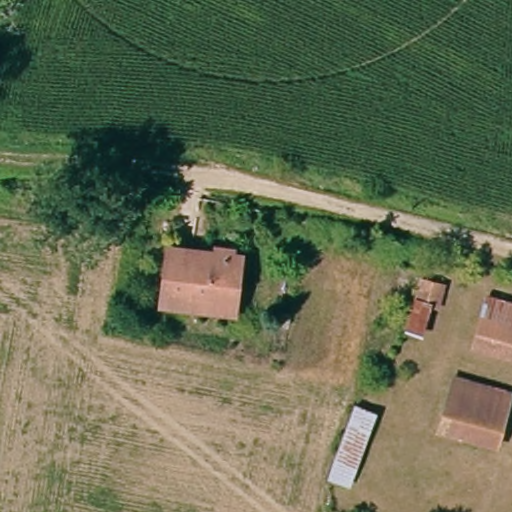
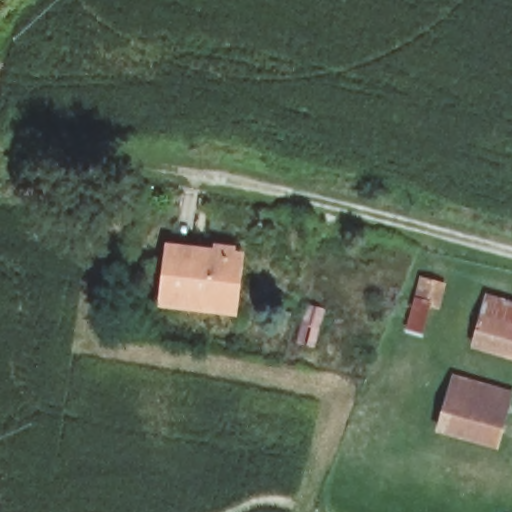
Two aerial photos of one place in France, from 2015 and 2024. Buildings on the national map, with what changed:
unchanged [(234,263),(223,317),(156,303),(167,250),(234,263)]
unchanged [(440,281),(434,304),(422,302),(415,334),(404,332),(416,276),(440,281)]
unchanged [(512,364),(468,352),(482,298),(512,306),(512,364)]
unchanged [(312,348),(294,342),(307,305),(323,312),(312,348)]
unchanged [(505,389),(491,448),(433,434),(447,375),(505,389)]
demolished [(343,488),(325,482),(352,407),(374,414),(343,488)]

